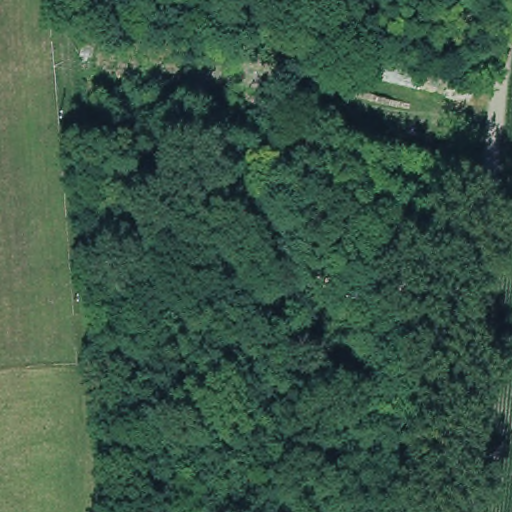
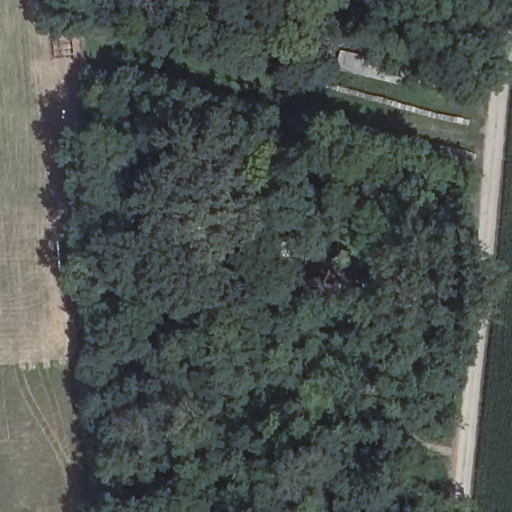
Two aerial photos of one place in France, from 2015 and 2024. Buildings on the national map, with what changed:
unchanged [(369,51),(420,61),(412,85),(364,71),(369,51)]
unchanged [(433,76),(476,85),(470,105),(430,91),(433,76)]

